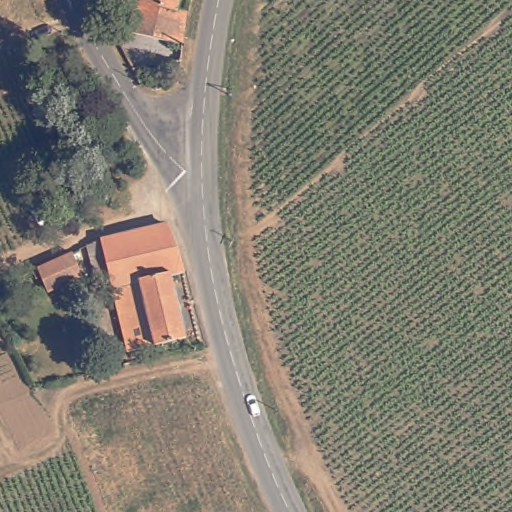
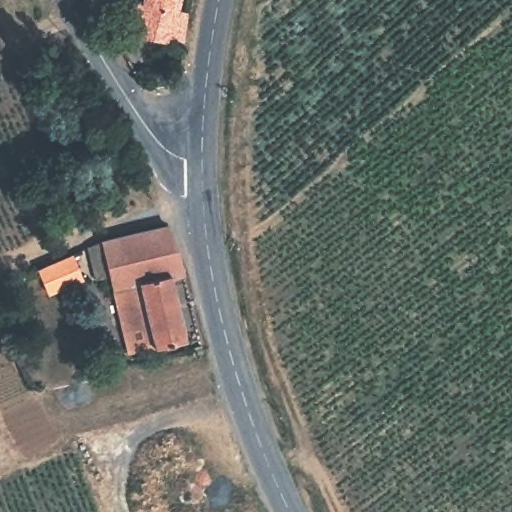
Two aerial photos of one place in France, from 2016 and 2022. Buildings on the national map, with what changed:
unchanged [(181,10),(191,13),(187,47),(132,35),(140,1),(149,3),(149,0),(183,0),(181,10)]
unchanged [(106,237),(171,224),(179,241),(186,260),(188,268),(174,272),(190,335),(133,351),(111,268),(97,271),(89,245),(106,237)]
unchanged [(79,252),(90,276),(57,290),(50,275),(43,278),(39,269),(79,252)]

